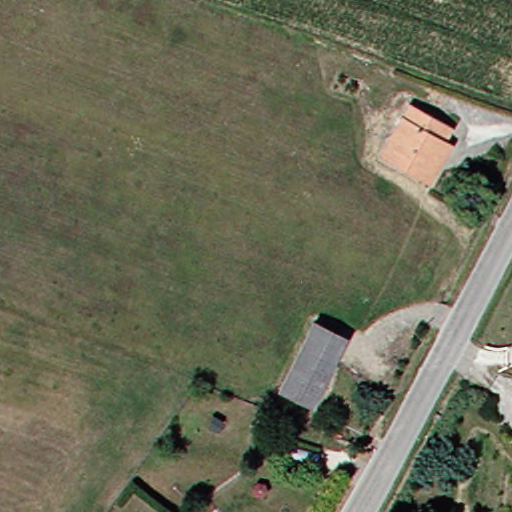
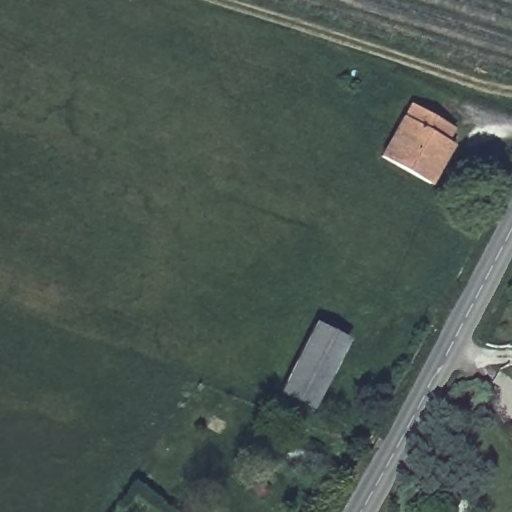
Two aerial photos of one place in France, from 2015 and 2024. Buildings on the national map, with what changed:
unchanged [(437,166),(430,179),(384,153),(413,102),(454,125),(445,140),(450,143),(437,166)]
unchanged [(348,339),(314,403),(286,388),(317,323),(348,339)]

